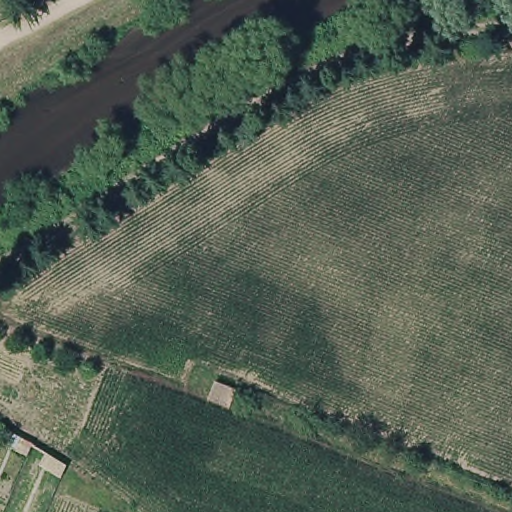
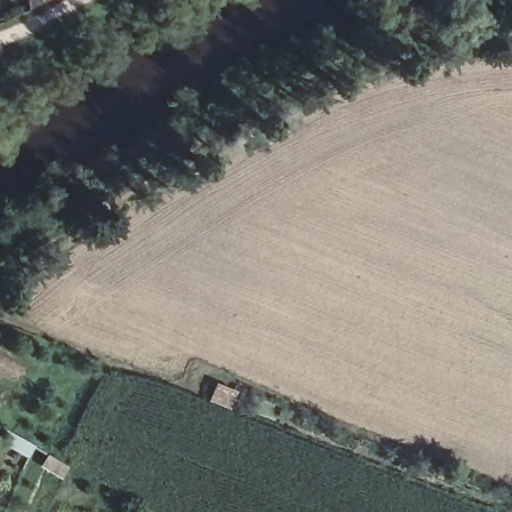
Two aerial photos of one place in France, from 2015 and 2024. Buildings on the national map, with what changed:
unchanged [(214,383),(234,392),(228,407),(207,400),(214,383)]

